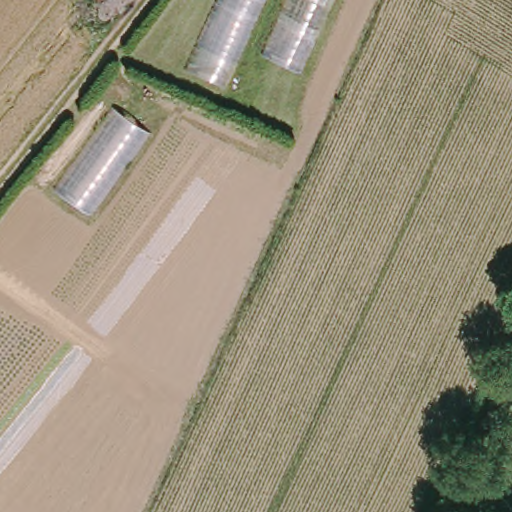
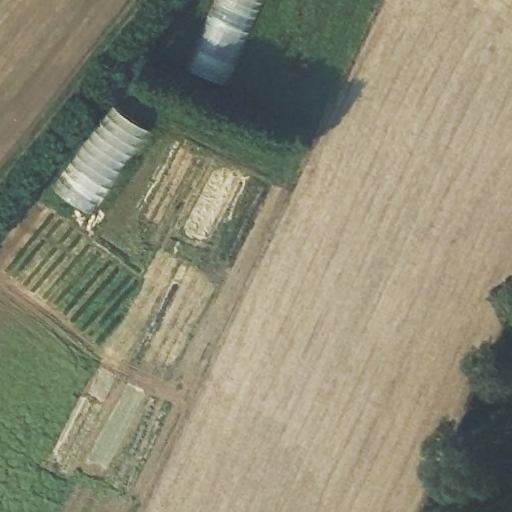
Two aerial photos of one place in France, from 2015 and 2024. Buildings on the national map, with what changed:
unchanged [(218,0),(265,0),(226,85),(188,68),(218,0)]
demolished [(305,72),(266,54),(289,0),(335,0),(305,72)]
unchanged [(117,104),(153,130),(92,214),(56,187),(117,104)]

